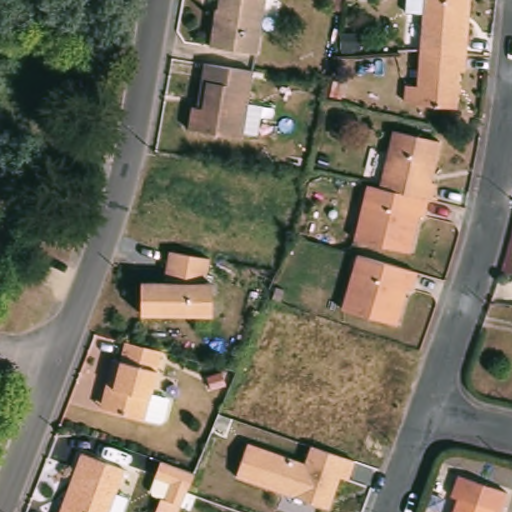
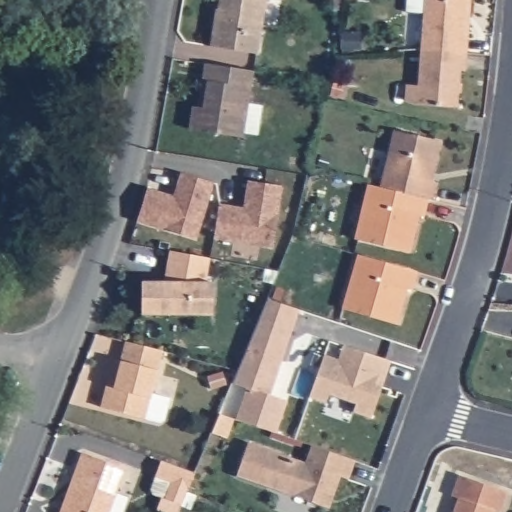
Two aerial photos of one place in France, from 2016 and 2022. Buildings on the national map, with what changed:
unchanged [(210,49),(215,13),(217,13),(219,0),(267,0),(257,57),(210,49)]
unchanged [(463,35),(470,36),(466,72),(461,72),(458,110),(420,106),(405,102),(407,86),(420,86),(421,70),(425,15),(406,14),(408,0),(467,0),(463,35)]
unchanged [(262,111),(257,140),(245,137),(244,140),(189,132),(191,110),(199,110),(203,84),(206,65),(255,75),(250,110),(262,111)]
demolished [(42,176),(16,167),(29,132),(34,134),(38,123),(32,120),(40,101),(65,110),(42,176)]
unchanged [(438,185),(433,201),(431,201),(380,189),(395,131),(443,144),(437,163),(433,184),(438,185)]
new [(145,187),(172,195),(180,172),(213,183),(195,240),(135,220),(145,187)]
new [(218,205),(242,209),(247,182),(281,188),(270,250),(212,239),(218,205)]
unchanged [(426,219),(422,217),(412,255),(356,240),(371,185),(380,189),(431,201),(426,219)]
unchanged [(161,278),(169,249),(209,258),(202,280),(211,278),(212,312),(140,314),(138,278),(161,278)]
unchanged [(415,292),(410,290),(398,326),(345,309),(361,257),(420,275),(415,292)]
new [(266,302),(297,312),(268,397),(286,403),(275,435),(235,421),(246,391),(231,386),(266,302)]
unchanged [(105,377),(110,360),(119,361),(124,342),(163,353),(151,396),(170,401),(164,422),(159,425),(106,410),(96,407),(105,377)]
new [(324,356),(338,361),(343,347),(391,362),(372,418),(355,412),(357,405),(328,396),(326,403),(310,398),(324,356)]
unchanged [(209,380),(222,375),(226,388),(213,392),(209,380)]
unchanged [(249,443),(305,463),(311,445),(355,460),(350,480),(339,476),(328,511),(236,477),(249,443)]
unchanged [(66,511),(81,473),(75,471),(81,456),(125,473),(110,512),(61,512),(62,510),(66,511)]
unchanged [(186,495),(180,510),(163,503),(164,502),(152,498),(150,493),(154,480),(153,480),(159,463),(194,476),(186,495)]
unchanged [(450,500),(458,480),(506,497),(500,512),(455,512),(458,502),(450,500)]

